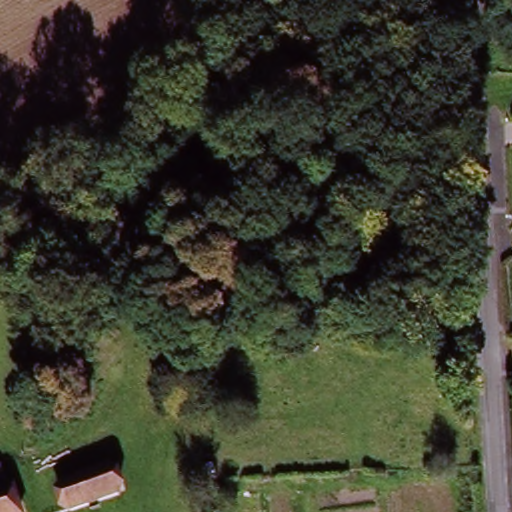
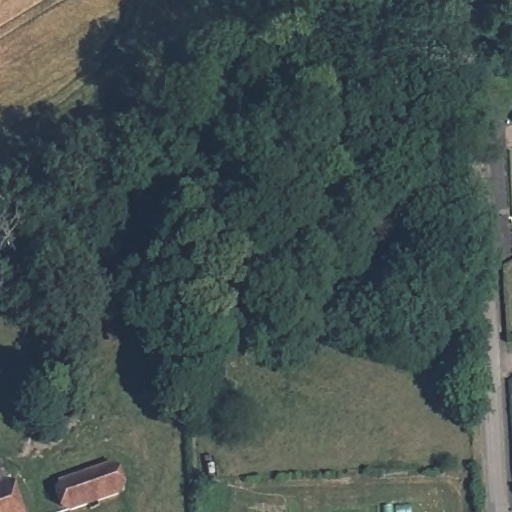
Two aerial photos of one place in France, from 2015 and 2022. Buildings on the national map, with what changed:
unchanged [(157,414),(155,406),(167,403),(170,411),(157,414)]
unchanged [(78,475),(107,467),(113,490),(65,506),(57,482),(78,475)]
unchanged [(11,512),(0,512),(0,479),(11,512)]

